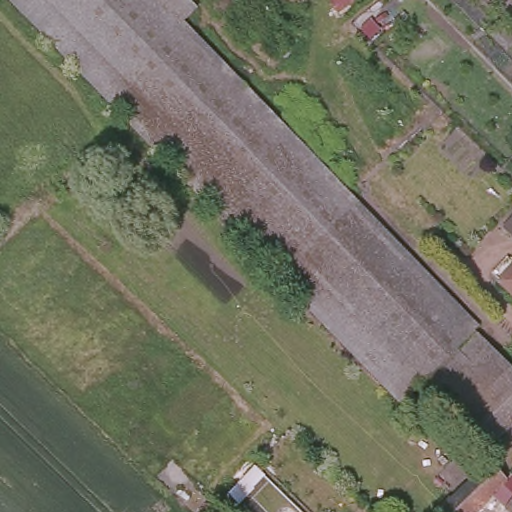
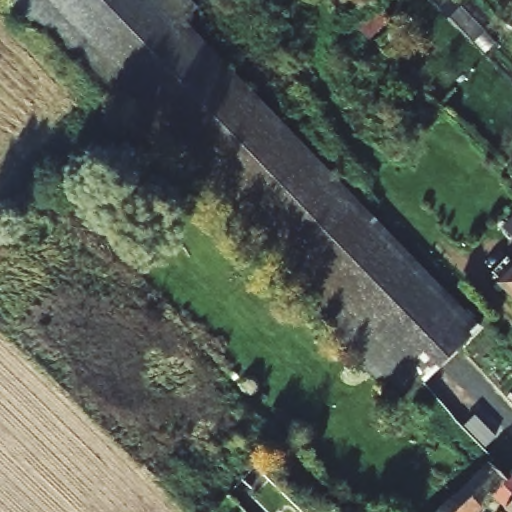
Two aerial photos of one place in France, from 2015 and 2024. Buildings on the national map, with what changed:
unchanged [(178,20),(478,328),(470,337),(512,379),(512,421),(475,457),(411,391),(398,401),(3,0),(184,0),(191,7),(178,20)]
unchanged [(512,217),(512,242),(500,229),(512,217)]
unchanged [(512,266),(512,291),(500,279),(512,266)]
unchanged [(473,512),(437,512),(490,459),(507,476),(512,472),(512,512),(492,492),(473,512)]

